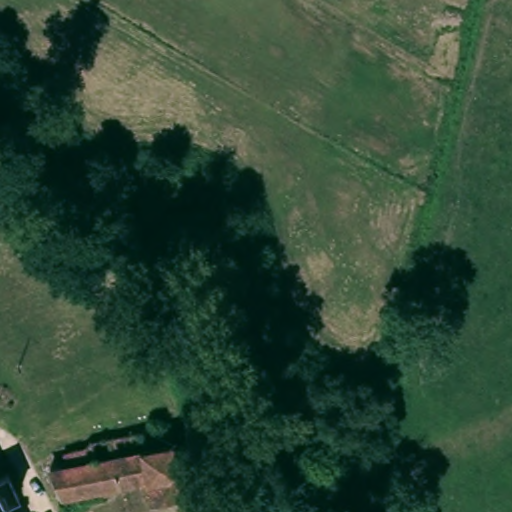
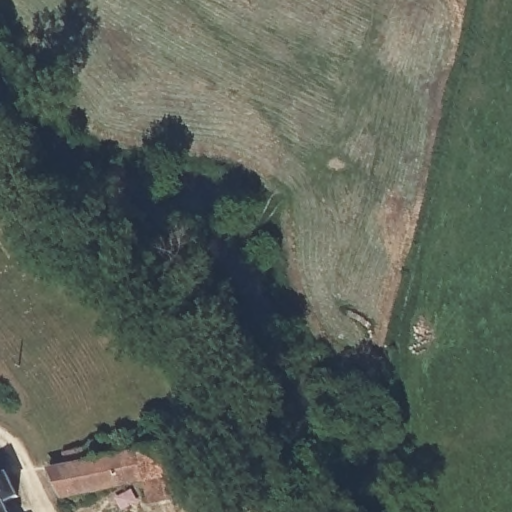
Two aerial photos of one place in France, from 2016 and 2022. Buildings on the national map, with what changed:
unchanged [(172,455),(177,454),(177,458),(184,487),(185,488),(181,490),(183,500),(152,507),(147,483),(137,485),(99,493),(62,500),(57,471),(72,467),(70,456),(85,452),(87,452),(88,439),(92,438),(103,436),(120,432),(135,430),(148,427),(153,427),(154,427),(157,444),(169,443),(172,455)]
unchanged [(0,469),(1,470),(14,465),(24,491),(12,497),(18,512),(0,512),(0,469)]

